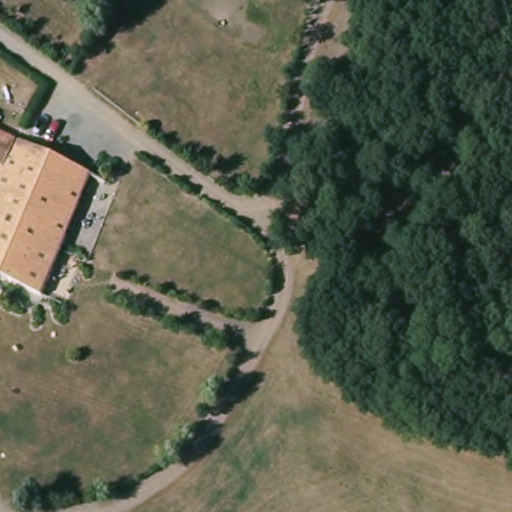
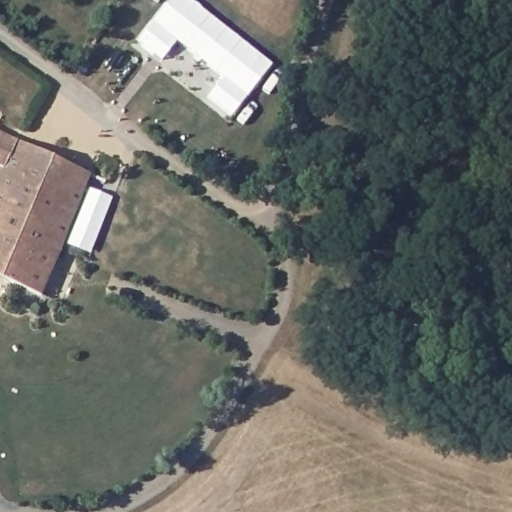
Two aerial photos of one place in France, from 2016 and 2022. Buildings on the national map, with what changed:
new [(234,117),(209,97),(224,77),(177,39),(161,59),(138,40),(171,0),(193,0),(272,63),(234,117)]
unchanged [(44,292),(0,276),(0,176),(2,171),(0,170),(0,131),(95,174),(44,292)]

